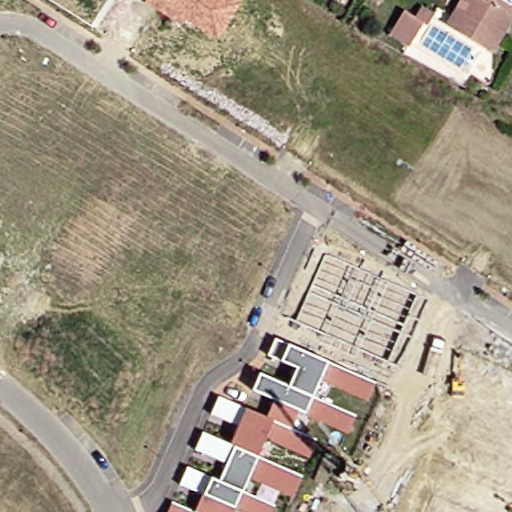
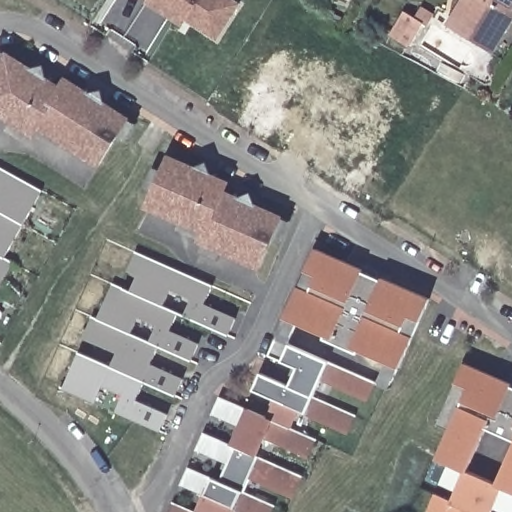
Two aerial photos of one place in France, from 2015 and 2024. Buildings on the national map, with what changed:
new [(186,20),(181,26),(144,4),(147,0),(233,0),(239,4),(218,40),(186,20)]
unchanged [(453,0),(505,0),(499,10),(504,14),(486,44),(482,51),(438,25),(444,14),(453,0)]
unchanged [(416,16),(421,5),(436,13),(427,29),(421,26),(410,46),(389,35),(405,9),(416,16)]
new [(44,65),(47,79),(60,85),(65,77),(90,93),(104,90),(105,102),(131,118),(130,120),(137,124),(126,142),(118,137),(99,168),(61,144),(59,149),(35,134),(34,139),(27,136),(24,140),(9,130),(11,125),(0,118),(0,50),(5,54),(8,51),(33,69),(44,65)]
new [(197,167),(208,163),(212,174),(231,181),(228,192),(242,198),(252,193),(255,204),(285,217),(284,220),(290,223),(282,243),(277,240),(265,269),(262,268),(260,270),(222,254),(219,261),(200,253),(204,247),(197,244),(199,239),(177,230),(179,225),(145,210),(153,193),(144,189),(154,168),(161,170),(169,154),(197,167)]
new [(42,192),(33,208),(23,225),(14,242),(4,258),(14,263),(2,284),(0,283),(0,168),(32,185),(42,192)]
unchanged [(315,249),(364,269),(362,273),(381,280),(382,277),(429,298),(399,369),(390,389),(377,384),(388,364),(359,352),(358,355),(324,339),(325,335),(297,324),(289,342),(277,337),(315,249)]
new [(116,354),(93,344),(82,339),(91,317),(97,319),(105,302),(113,284),(123,289),(130,292),(137,275),(127,272),(135,253),(145,257),(213,287),(204,305),(235,319),(228,337),(177,314),(169,332),(199,344),(191,362),(158,348),(150,366),(183,379),(175,397),(144,383),(135,401),(168,415),(159,432),(115,413),(123,396),(102,387),(94,403),(63,389),(79,353),(110,367),(116,354)]
unchanged [(206,492),(183,481),(189,464),(221,478),(229,461),(198,447),(205,430),(234,443),(242,424),(213,411),(220,394),(247,406),(275,419),(283,402),(254,389),(262,372),(290,384),(298,367),(269,354),(277,337),(376,381),(368,398),(323,378),(315,395),(356,413),(349,431),(299,409),(292,426),(317,437),(308,454),(265,434),(257,453),(301,473),(292,493),(250,474),(244,489),(275,503),(271,512),(251,512),(236,506),(233,512),(170,512),(176,499),(198,509),(201,503),(206,492)]
new [(434,494),(452,502),(456,491),(439,485),(448,464),(437,460),(450,430),(438,425),(457,383),(464,364),(512,383),(512,512),(501,512),(494,509),(493,512),(427,512),(434,494)]

